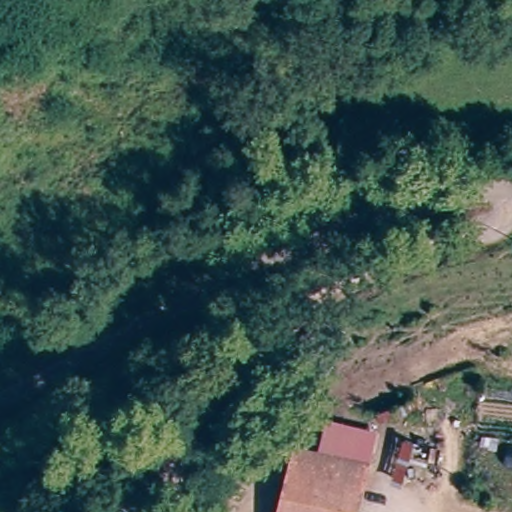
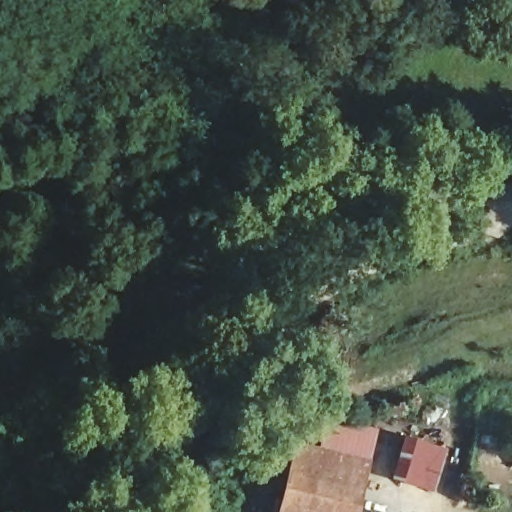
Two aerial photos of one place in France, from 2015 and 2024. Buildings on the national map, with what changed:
unchanged [(320,450),(330,425),(376,438),(368,465),(320,450)]
new [(402,435),(448,450),(434,495),(389,480),(402,435)]
unchanged [(279,512),(297,444),(320,450),(368,465),(354,512),(279,512)]

